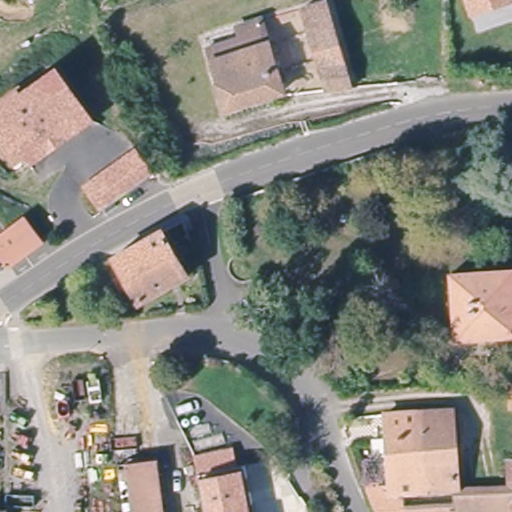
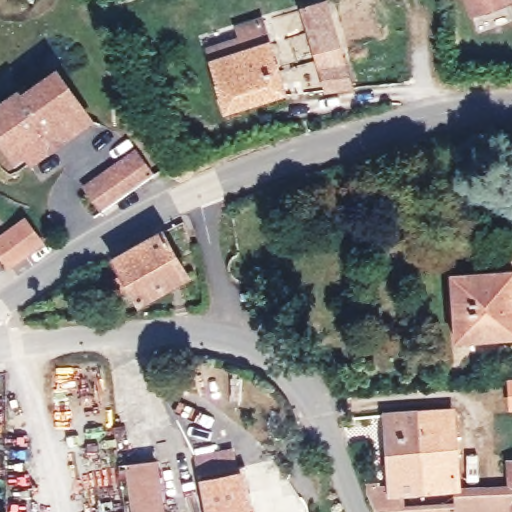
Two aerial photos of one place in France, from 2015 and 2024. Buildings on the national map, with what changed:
unchanged [(461,12),(458,0),(504,0),(504,5),(461,12)]
unchanged [(350,78),(325,85),(305,15),(331,8),(350,78)]
unchanged [(265,16),(287,89),(228,107),(214,58),(209,40),(238,32),(236,25),(265,16)]
unchanged [(4,142),(0,137),(0,110),(47,76),(56,69),(91,117),(82,124),(62,139),(52,146),(32,160),(27,153),(17,160),(4,142)]
unchanged [(106,207),(88,184),(137,148),(155,173),(106,207)]
unchanged [(43,239),(13,262),(0,246),(0,238),(27,218),(43,239)]
unchanged [(174,242),(169,249),(183,282),(141,306),(116,259),(170,232),(174,242)]
unchanged [(451,279),(512,272),(512,334),(455,339),(451,279)]
unchanged [(459,426),(460,498),(421,500),(420,427),(459,426)]
unchanged [(389,499),(390,443),(381,443),(381,428),(420,427),(421,500),(410,502),(412,512),(385,512),(379,501),(389,499)]
unchanged [(161,512),(126,512),(117,464),(152,459),(161,512)]
unchanged [(512,471),(512,512),(511,512),(511,499),(512,471)]
unchanged [(246,480),(254,512),(203,512),(198,491),(246,480)]
unchanged [(511,499),(511,512),(459,512),(460,498),(511,499)]

